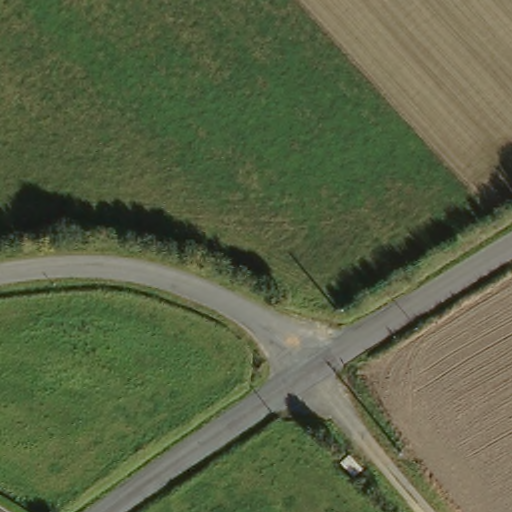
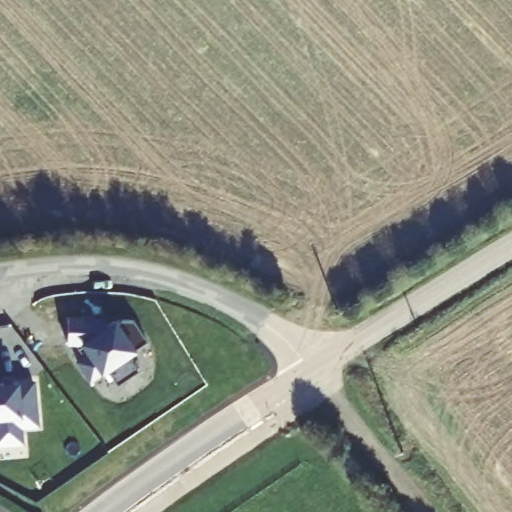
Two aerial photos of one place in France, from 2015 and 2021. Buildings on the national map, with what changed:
new [(148,342),(127,356),(138,372),(117,387),(105,371),(92,381),(78,362),(89,354),(82,344),(114,322),(116,325),(122,320),(134,320),(148,342)]
new [(19,382),(35,380),(39,427),(22,429),(23,445),(0,447),(0,383),(19,382)]

